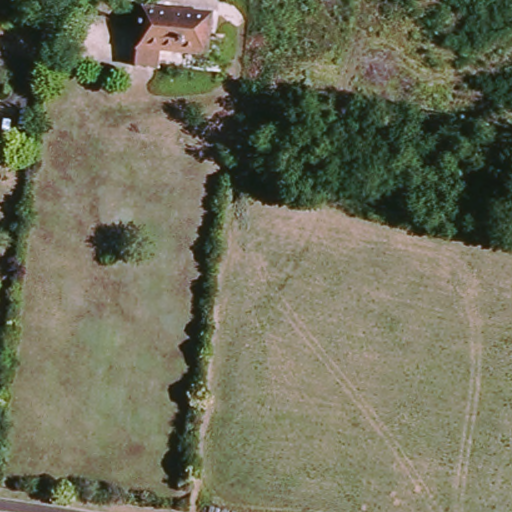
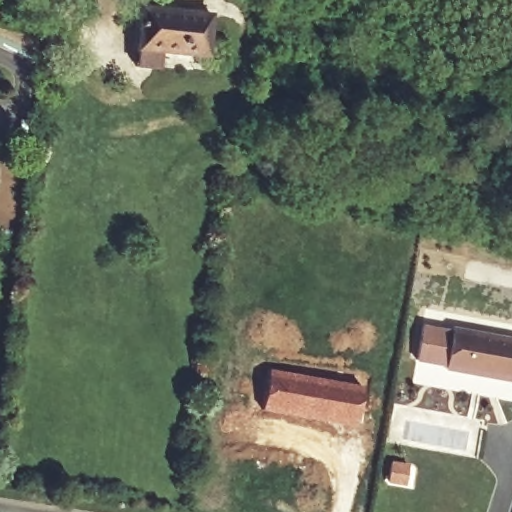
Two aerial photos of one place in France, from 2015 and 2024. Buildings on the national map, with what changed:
unchanged [(139,4),(209,12),(204,51),(159,47),(156,64),(134,62),(135,44),(139,4)]
new [(451,334),(452,330),(512,342),(512,384),(444,371),(445,367),(415,361),(422,328),(451,334)]
new [(269,368),(363,384),(355,427),(262,410),(269,368)]

